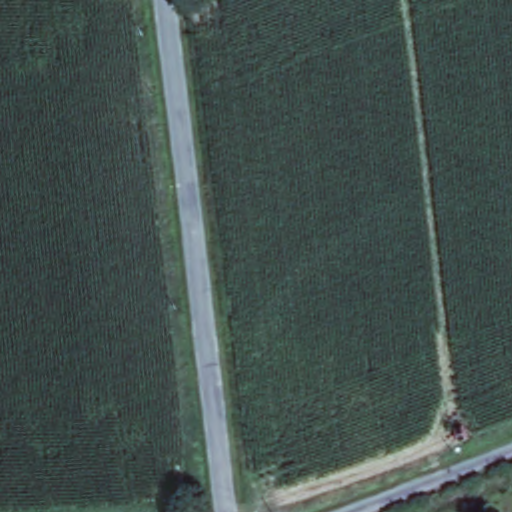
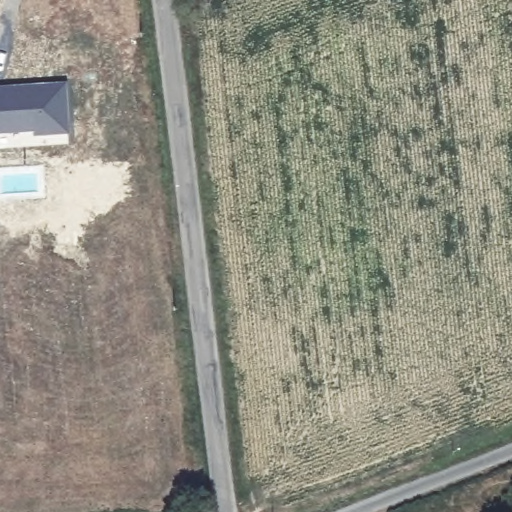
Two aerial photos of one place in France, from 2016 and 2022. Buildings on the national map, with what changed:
new [(69,130),(35,133),(35,128),(0,130),(0,86),(65,82),(69,130)]

